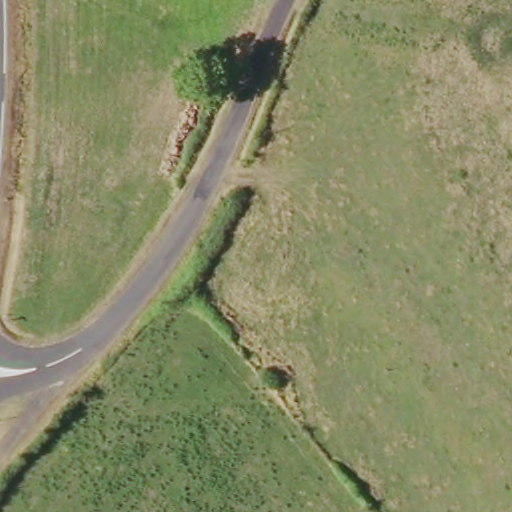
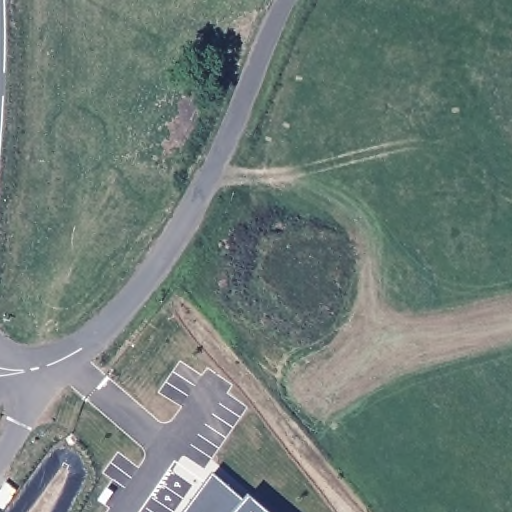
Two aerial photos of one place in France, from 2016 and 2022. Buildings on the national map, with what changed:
new [(211,476),(243,502),(249,498),(266,512),(185,512),(211,476)]

